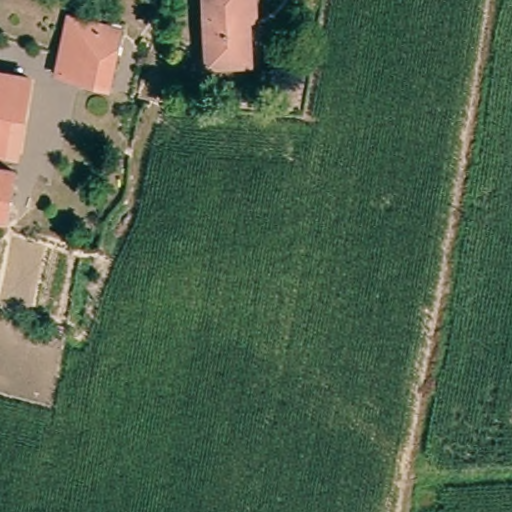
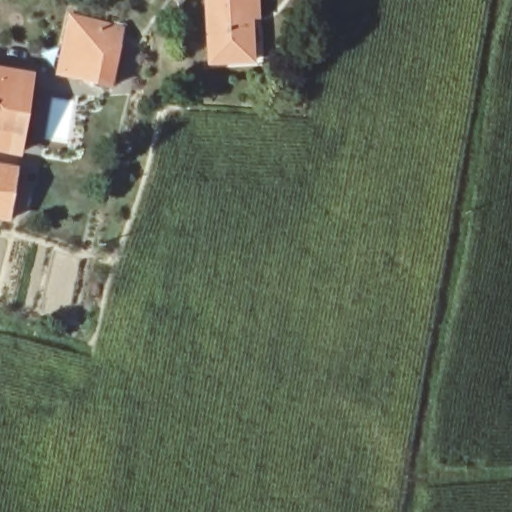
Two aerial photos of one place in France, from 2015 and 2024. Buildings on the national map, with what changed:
unchanged [(255,18),(248,19),(251,63),(211,65),(207,0),(254,0),(255,18)]
unchanged [(71,21),(121,33),(109,86),(59,75),(71,21)]
unchanged [(29,78),(17,153),(0,150),(0,72),(29,78)]
unchanged [(14,171),(6,220),(0,220),(0,169),(14,171)]

